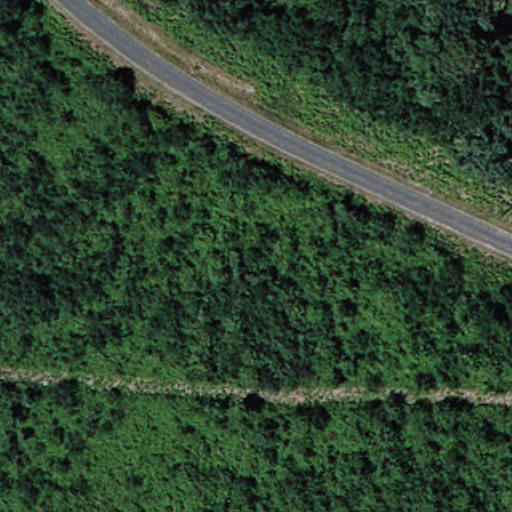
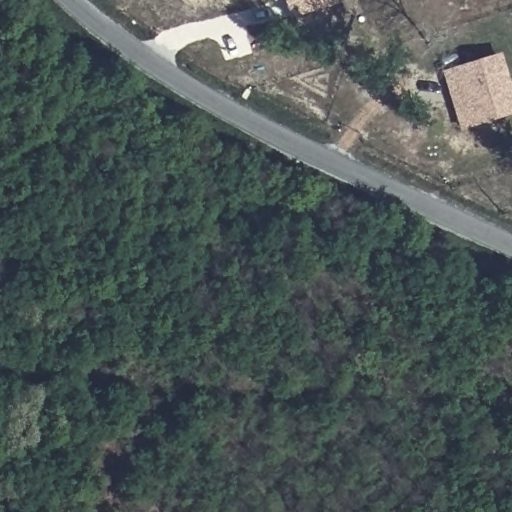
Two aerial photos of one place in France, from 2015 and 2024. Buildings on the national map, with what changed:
new [(283,0),(336,0),(337,4),(288,19),(283,0)]
new [(441,71),(499,53),(512,93),(512,114),(459,130),(441,71)]

